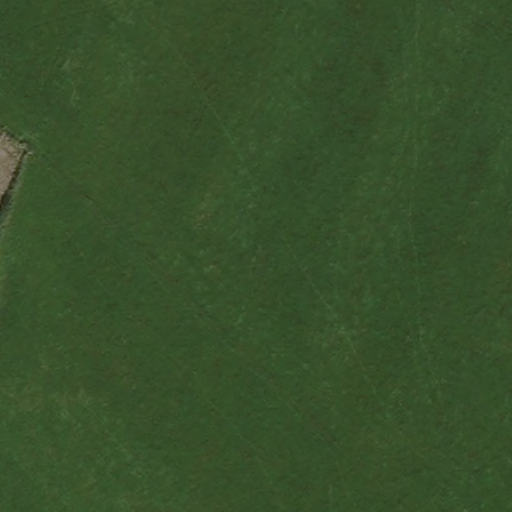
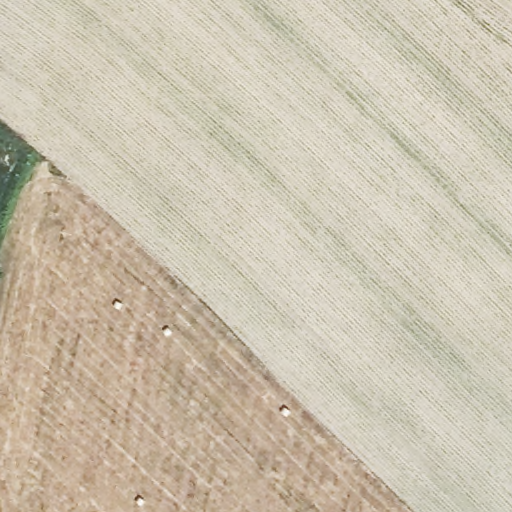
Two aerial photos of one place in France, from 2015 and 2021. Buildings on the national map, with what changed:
[]

